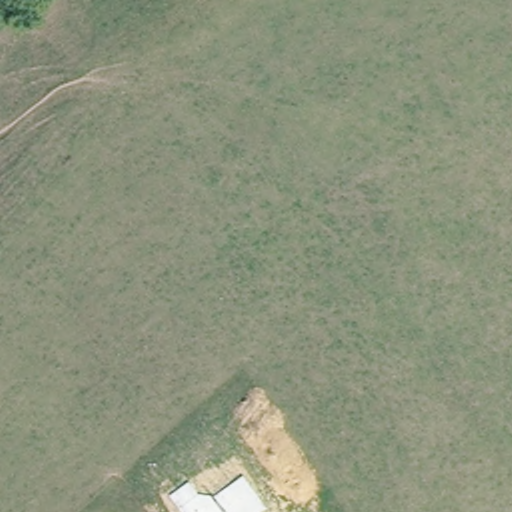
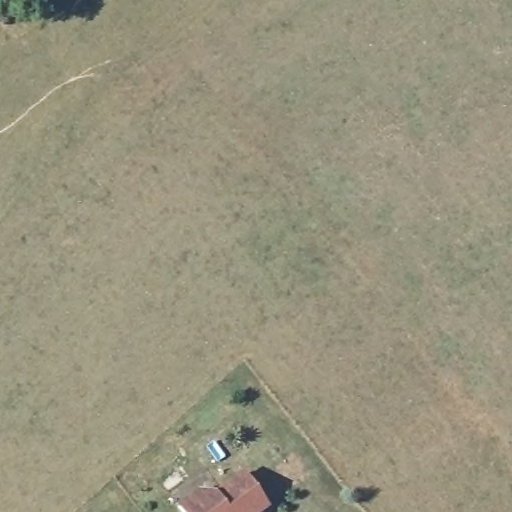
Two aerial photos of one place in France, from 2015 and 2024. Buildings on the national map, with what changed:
new [(263,512),(179,512),(175,506),(195,490),(214,492),(244,471),(268,508),(263,512)]

